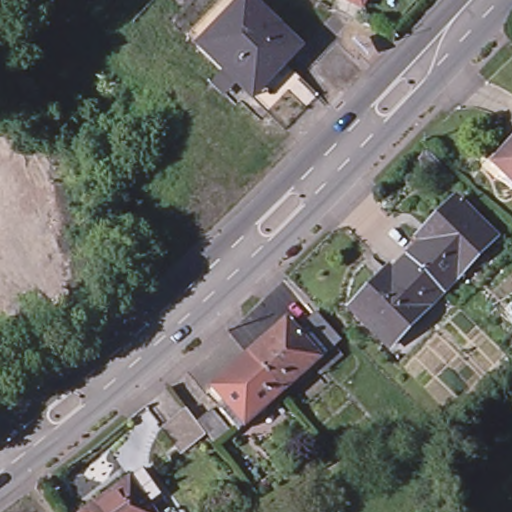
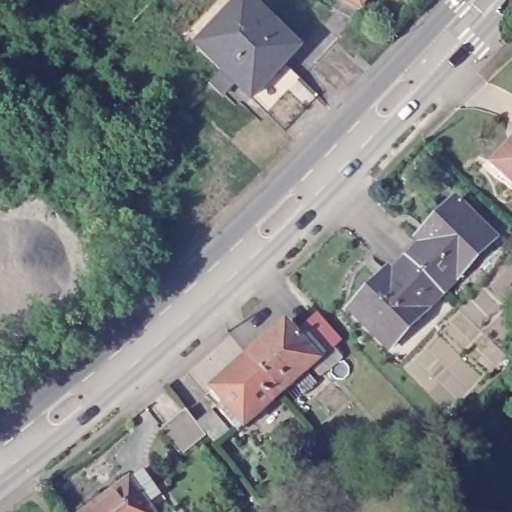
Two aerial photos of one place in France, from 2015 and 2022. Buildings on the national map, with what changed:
unchanged [(242,0),(205,39),(200,43),(197,47),(186,36),(191,31),(221,0),(242,0)]
unchanged [(200,43),(205,39),(242,0),(249,0),(300,47),(283,64),(273,75),(251,98),(246,94),(197,47),(200,43)]
unchanged [(339,0),(367,0),(361,11),(339,0)]
unchanged [(492,165),(512,144),(512,183),(492,165)]
unchanged [(408,260),(422,245),(419,242),(457,202),(495,239),(442,292),(408,260)]
unchanged [(392,346),(355,310),(393,270),(396,272),(408,260),(442,292),(392,346)]
unchanged [(285,323),(300,341),(305,336),(300,330),(315,317),(332,337),(335,342),(335,346),(333,349),(325,357),(318,362),(281,392),(249,355),(285,323)]
unchanged [(218,411),(223,405),(209,389),(249,355),(281,392),(242,426),(235,432),(218,411)]
unchanged [(158,429),(185,410),(194,422),(209,410),(227,430),(211,445),(204,435),(177,455),(158,429)]
unchanged [(83,511),(132,474),(146,463),(166,491),(152,502),(160,512),(84,512),(83,511)]

